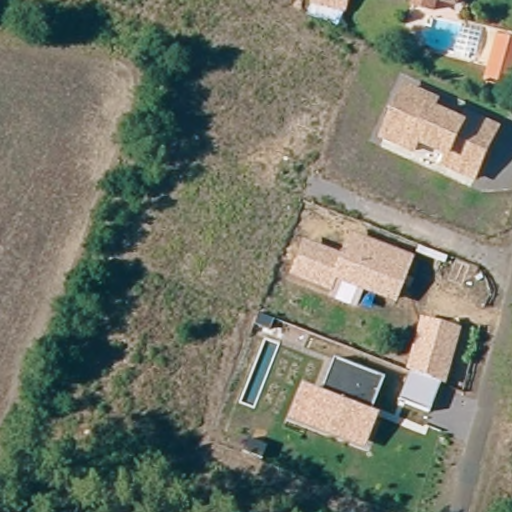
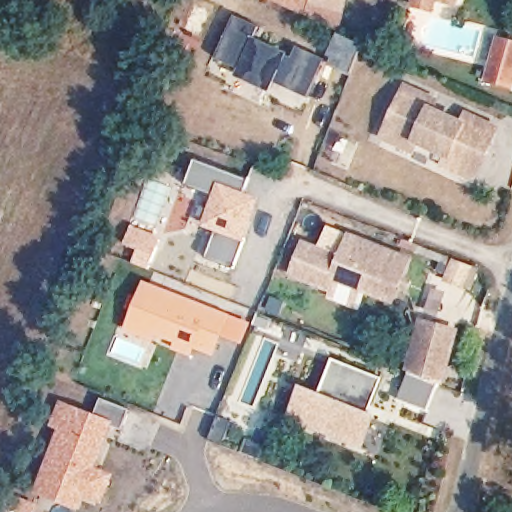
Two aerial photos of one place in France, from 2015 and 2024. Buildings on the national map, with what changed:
unchanged [(348,0),(344,13),(308,4),(309,0),(348,0)]
unchanged [(408,6),(409,0),(430,0),(428,11),(408,6)]
unchanged [(433,0),(452,0),(451,4),(433,0)]
new [(231,24),(256,35),(250,48),(288,66),(293,54),(321,67),(304,106),(270,91),(268,96),(233,80),(235,76),(212,66),(231,24)]
new [(512,47),(512,64),(505,93),(478,86),(487,51),(489,41),(512,47)]
unchanged [(477,183),(441,165),(447,156),(421,145),(416,155),(380,139),(405,82),(446,101),(441,109),(463,118),(466,109),(503,126),(477,183)]
new [(241,241),(229,272),(200,260),(212,231),(201,227),(212,200),(181,187),(191,161),(246,183),(240,198),(253,204),(244,227),(239,240),(241,241)]
new [(130,225),(160,237),(146,268),(130,262),(135,250),(123,245),(130,225)]
unchanged [(396,303),(335,281),(333,290),(291,274),(305,239),(343,253),(350,233),(415,257),(396,303)]
new [(142,280),(250,323),(241,345),(220,337),(213,357),(193,349),(190,357),(151,340),(120,329),(142,280)]
unchanged [(461,328),(448,381),(407,371),(420,317),(461,328)]
unchanged [(315,400),(330,362),(380,381),(356,442),(306,423),(288,416),(297,393),(315,400)]
new [(55,430),(47,427),(58,400),(94,413),(100,397),(129,409),(121,428),(115,425),(98,468),(115,474),(102,507),(84,501),(79,512),(31,494),(55,430)]
new [(20,495),(37,502),(34,512),(17,512),(14,511),(20,495)]

